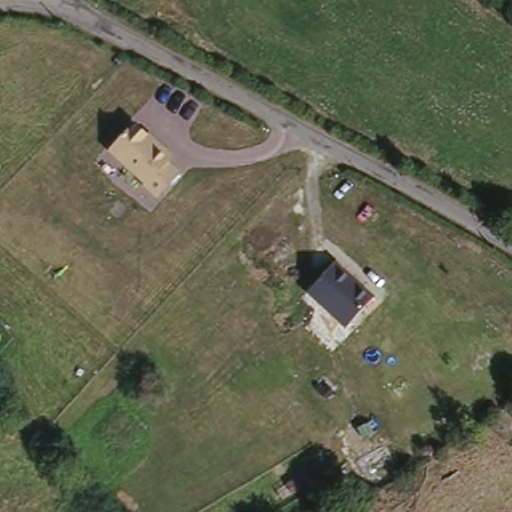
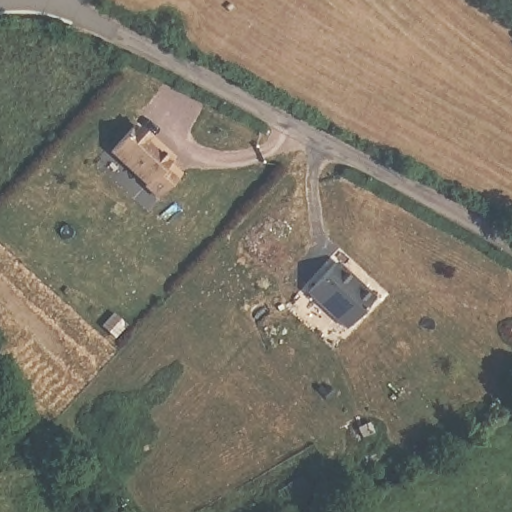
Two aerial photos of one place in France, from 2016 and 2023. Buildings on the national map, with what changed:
unchanged [(177,157),(171,163),(181,173),(158,201),(141,187),(144,183),(107,151),(133,123),(146,135),(151,131),(177,157)]
unchanged [(306,294),(337,263),(337,262),(376,296),(345,329),(306,294)]

